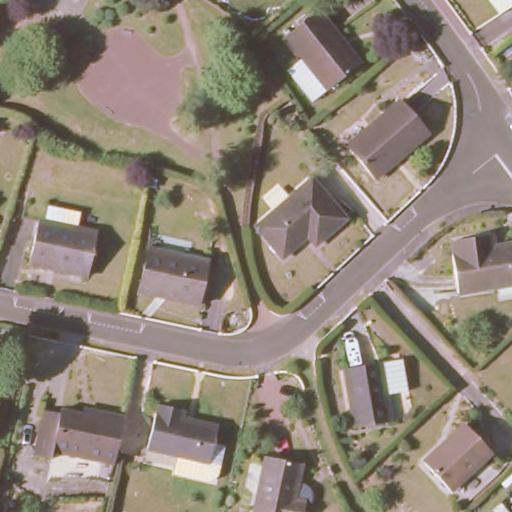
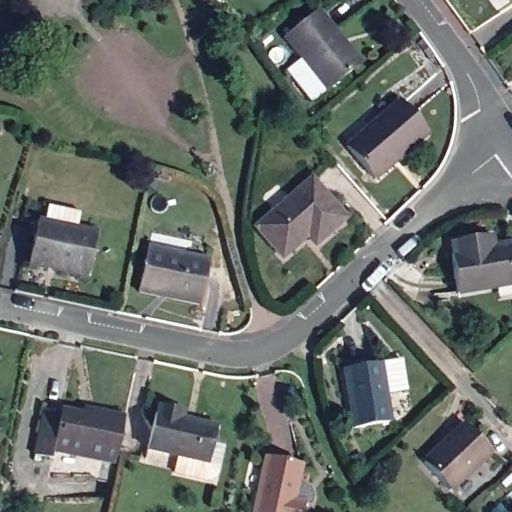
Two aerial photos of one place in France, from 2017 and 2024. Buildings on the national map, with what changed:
unchanged [(360,63),(326,89),(284,36),(317,9),(360,63)]
unchanged [(427,132),(374,178),(346,146),(399,99),(427,132)]
unchanged [(345,217),(315,244),(306,235),(282,258),(255,227),(310,177),(345,217)]
unchanged [(44,220),(47,205),(79,212),(76,228),(96,232),(87,276),(29,263),(37,219),(44,220)]
unchanged [(457,293),(450,253),(452,252),(449,240),(491,234),(492,246),(499,245),(512,243),(512,284),(457,293)]
unchanged [(207,260),(197,304),(138,292),(148,247),(207,260)]
unchanged [(399,359),(405,391),(385,394),(390,422),(353,428),(343,368),(399,359)]
unchanged [(46,454),(27,450),(34,422),(38,404),(54,408),(55,404),(76,409),(77,403),(85,405),(119,412),(109,459),(47,446),(46,454)]
unchanged [(218,465),(216,474),(212,479),(206,480),(172,472),(176,454),(146,447),(157,404),(182,410),(182,419),(216,426),(212,442),(222,444),(218,465)]
unchanged [(485,448),(444,485),(417,457),(459,418),(485,448)]
unchanged [(296,464),(288,499),(299,502),(296,512),(248,512),(260,456),(296,464)]

